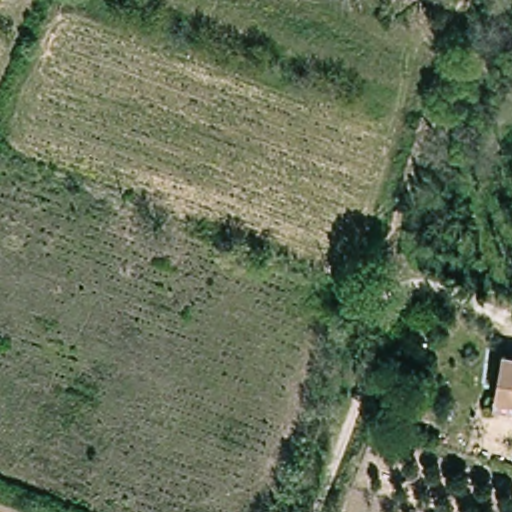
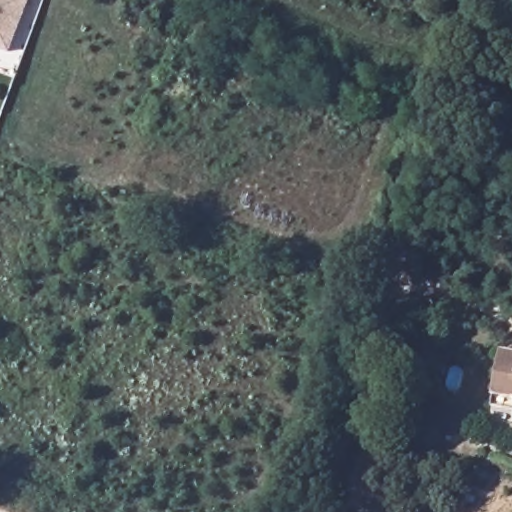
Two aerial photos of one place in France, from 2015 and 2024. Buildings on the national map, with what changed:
new [(10,55),(0,51),(0,0),(30,0),(10,55)]
unchanged [(493,389),(505,347),(512,349),(512,408),(490,403),(493,389)]

